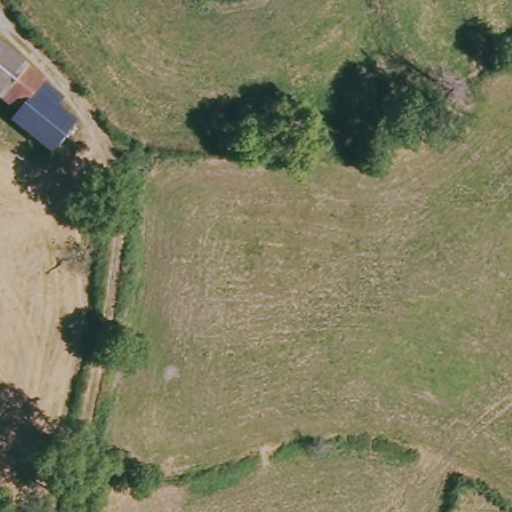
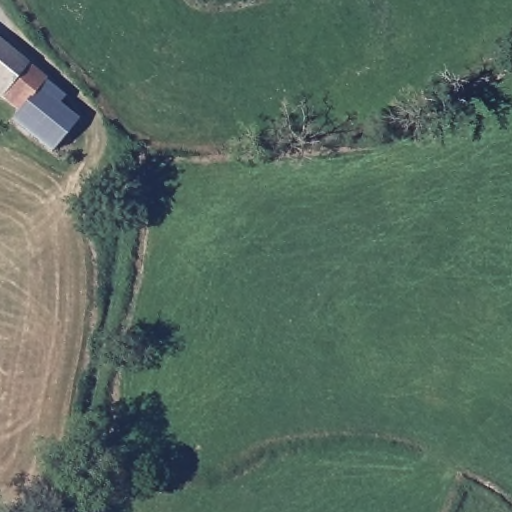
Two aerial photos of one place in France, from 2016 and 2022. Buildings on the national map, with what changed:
unchanged [(33,105),(30,111),(0,84),(0,30),(56,80),(48,89),(33,105)]
unchanged [(56,151),(24,122),(30,111),(33,105),(48,89),(83,120),(56,151)]

